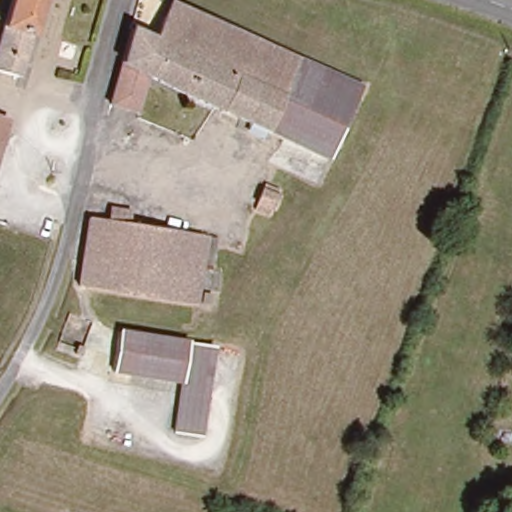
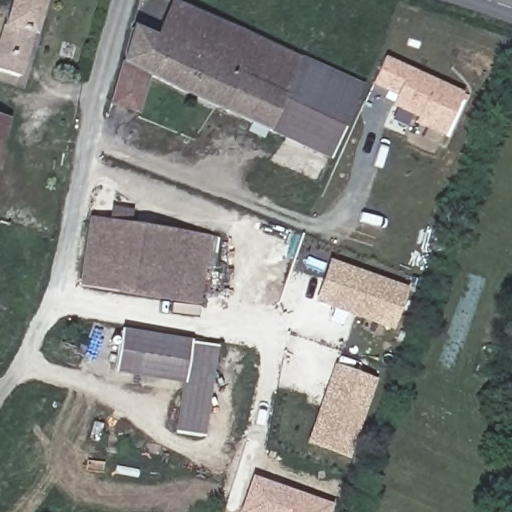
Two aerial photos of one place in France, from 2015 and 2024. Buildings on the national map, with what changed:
unchanged [(0,23),(7,0),(38,0),(14,76),(0,71),(0,23)]
unchanged [(308,53),(285,125),(210,97),(211,94),(222,62),(220,61),(176,45),(149,36),(162,4),(308,53)]
unchanged [(149,36),(148,37),(145,45),(137,77),(129,76),(127,81),(122,108),(101,101),(107,68),(122,27),(149,36)]
unchanged [(176,45),(220,61),(222,62),(211,94),(210,97),(209,97),(145,77),(144,79),(137,77),(145,45),(148,37),(149,36),(176,45)]
unchanged [(285,125),(308,53),(367,76),(338,151),(283,132),(285,125)]
new [(372,84),(384,56),(463,92),(443,136),(415,123),(417,117),(391,105),(396,95),(372,84)]
unchanged [(0,151),(0,125),(9,127),(0,151)]
unchanged [(79,293),(82,216),(102,217),(102,204),(119,203),(120,219),(210,224),(207,297),(79,293)]
new [(328,258),(408,287),(393,331),(314,302),(328,258)]
unchanged [(184,376),(112,377),(110,333),(183,334),(184,376)]
unchanged [(209,333),(208,430),(183,432),(184,376),(183,334),(209,333)]
new [(333,363),(378,379),(349,458),(305,443),(333,363)]
unchanged [(512,370),(512,411),(502,409),(512,369),(512,370)]
new [(251,475),(333,503),(330,512),(238,512),(251,475)]
unchanged [(496,478),(491,508),(477,505),(485,476),(496,478)]

